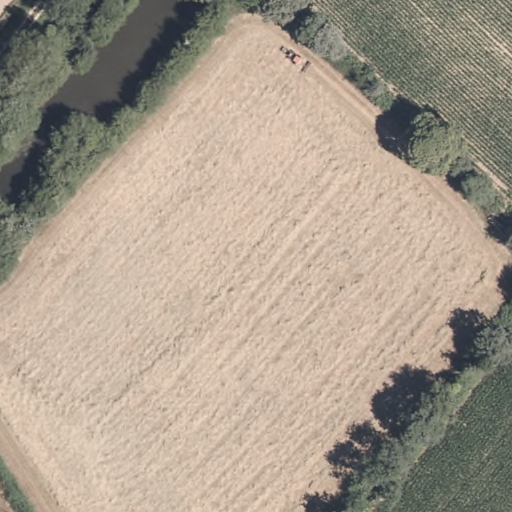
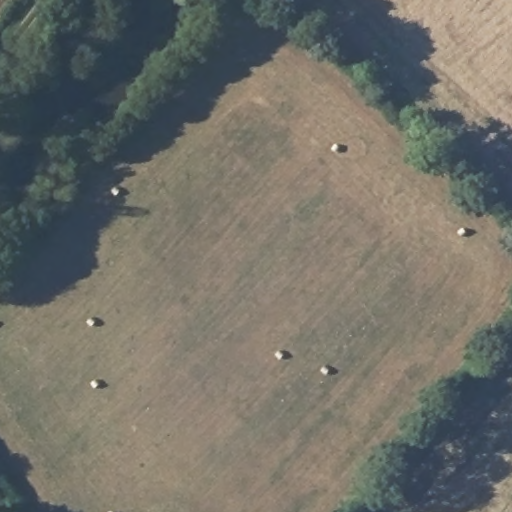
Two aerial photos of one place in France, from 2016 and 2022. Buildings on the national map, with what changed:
[]

